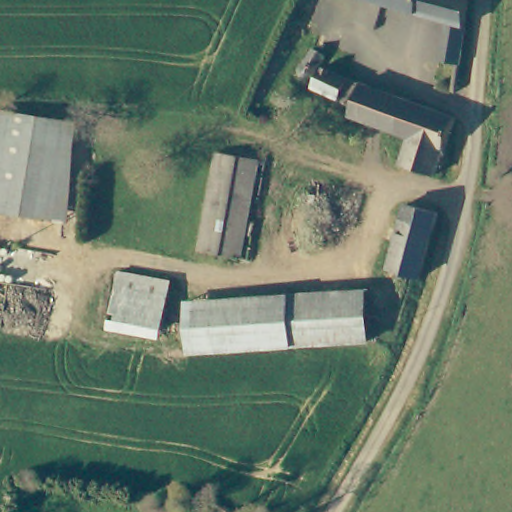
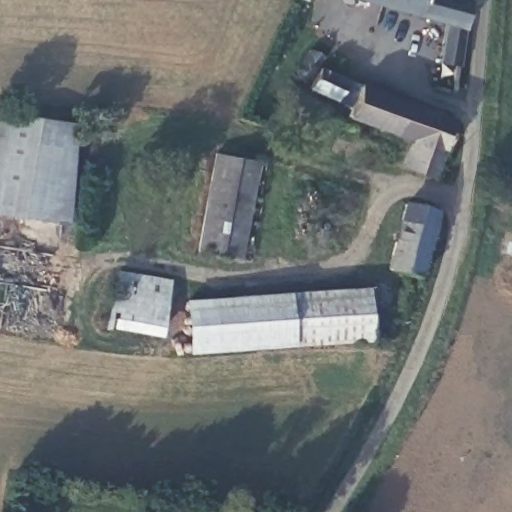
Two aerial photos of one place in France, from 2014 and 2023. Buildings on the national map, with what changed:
unchanged [(454,95),(434,91),(439,51),(446,25),(357,0),(466,0),(468,1),(454,95)]
unchanged [(298,70),(308,46),(323,54),(313,75),(306,77),(296,74),(298,70)]
unchanged [(349,76),(338,98),(312,88),(321,66),(349,76)]
unchanged [(348,119),(362,86),(456,121),(433,180),(400,168),(409,141),(348,119)]
unchanged [(75,125),(68,227),(0,215),(0,145),(5,114),(75,125)]
unchanged [(261,163),(242,262),(204,256),(220,156),(261,163)]
unchanged [(419,278),(389,268),(405,203),(436,213),(419,278)]
unchanged [(116,324),(124,275),(175,285),(167,334),(116,324)]
unchanged [(373,340),(193,351),(191,301),(371,291),(373,340)]

